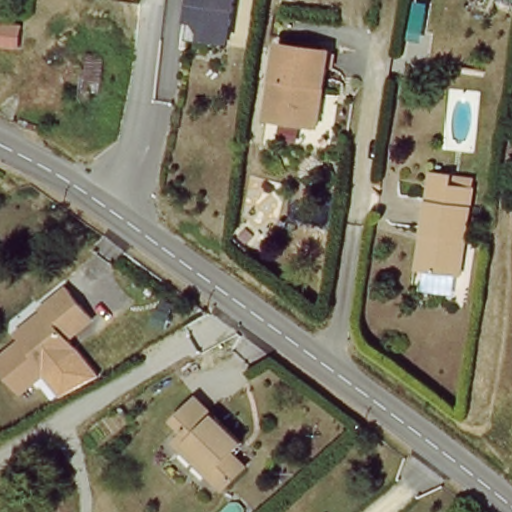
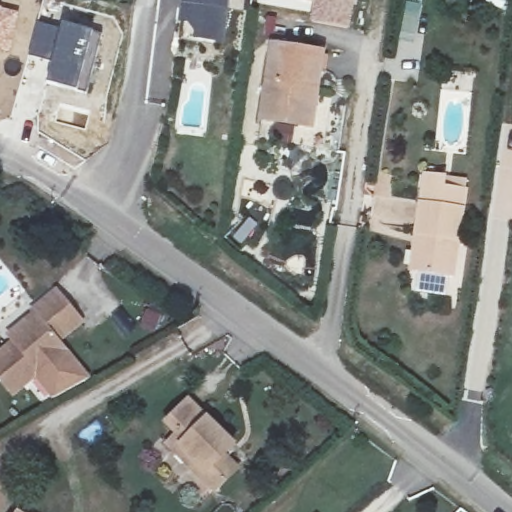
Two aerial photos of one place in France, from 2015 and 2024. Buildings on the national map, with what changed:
unchanged [(191,41),(193,26),(196,0),(237,0),(233,31),(231,46),(191,41)]
new [(350,30),(308,22),(312,4),(287,0),(355,0),(350,30)]
new [(404,0),(422,0),(415,43),(397,41),(404,0)]
new [(102,32),(86,94),(43,82),(49,62),(26,56),(36,19),(59,25),(60,21),(102,32)]
unchanged [(0,32),(18,34),(16,56),(0,54),(0,32)]
unchanged [(320,132),(269,124),(278,49),(329,57),(320,132)]
unchanged [(418,241),(428,173),(448,177),(447,181),(471,184),(469,194),(455,281),(420,275),(413,274),(418,241)]
unchanged [(32,316),(30,312),(54,292),(80,323),(56,342),(63,352),(10,396),(0,384),(0,352),(11,343),(6,337),(32,316)]
unchanged [(189,401),(230,442),(220,452),(233,465),(211,487),(197,473),(202,467),(176,442),(160,426),(158,424),(162,419),(184,397),(189,401)]

